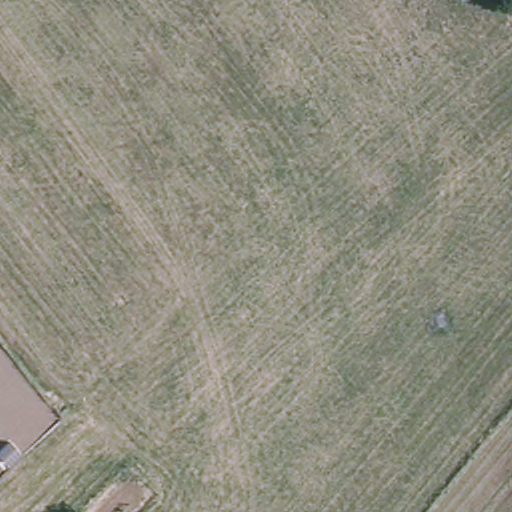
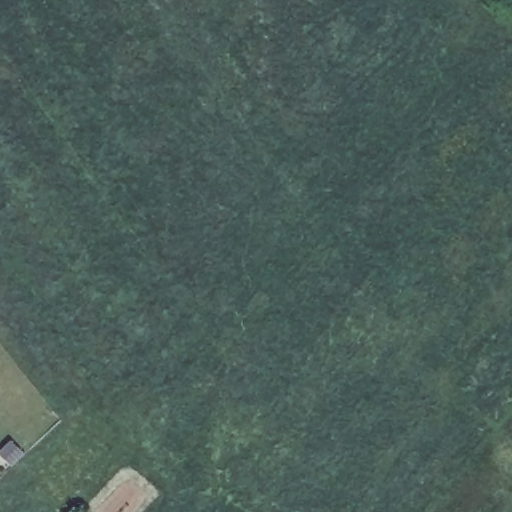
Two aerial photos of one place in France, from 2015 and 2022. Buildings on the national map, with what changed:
[]

